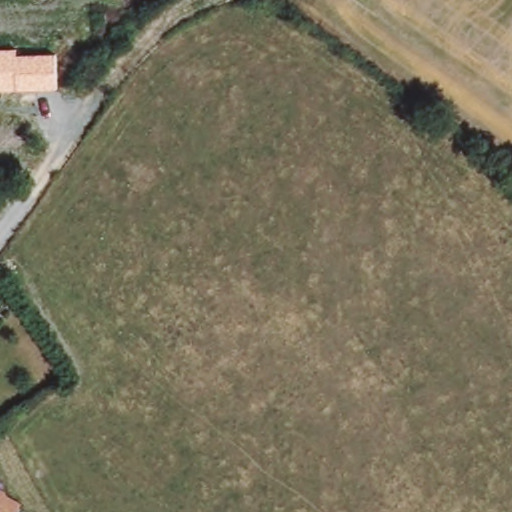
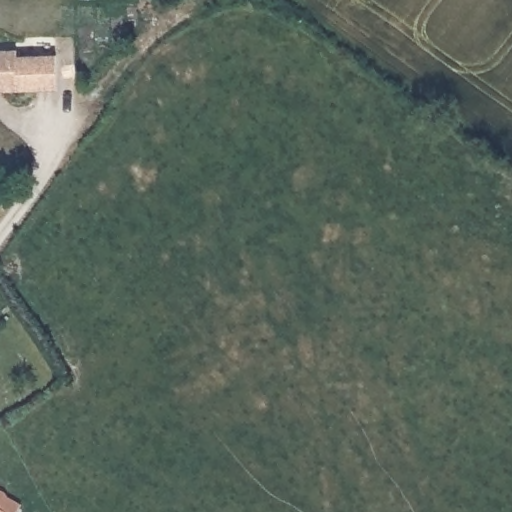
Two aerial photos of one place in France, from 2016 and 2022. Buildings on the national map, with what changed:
unchanged [(17,57),(56,55),(56,89),(0,92),(0,50),(17,50),(17,57)]
unchanged [(23,512),(0,512),(0,489),(24,511),(23,512)]

